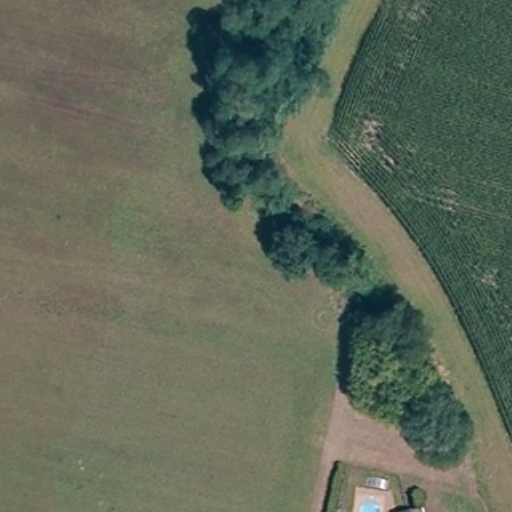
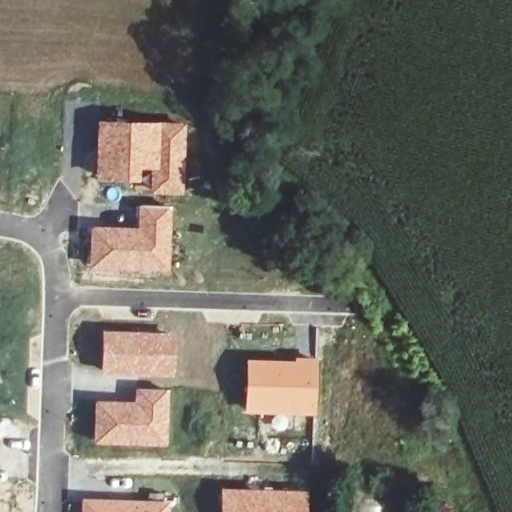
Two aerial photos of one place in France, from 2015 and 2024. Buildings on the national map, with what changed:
new [(96,119),(187,122),(183,194),(149,192),(148,179),(144,179),(144,182),(94,180),(96,119)]
new [(91,224),(135,226),(137,204),(172,206),(170,272),(88,268),(91,224)]
new [(101,328),(177,332),(174,376),(100,372),(101,328)]
new [(245,357),(319,357),(317,415),(244,412),(245,357)]
new [(94,399),(132,400),(134,387),(169,388),(167,447),(92,443),(94,399)]
new [(220,486),(308,490),(307,512),(219,512),(220,486)]
new [(81,497),(170,500),(170,512),(80,512),(81,497)]

